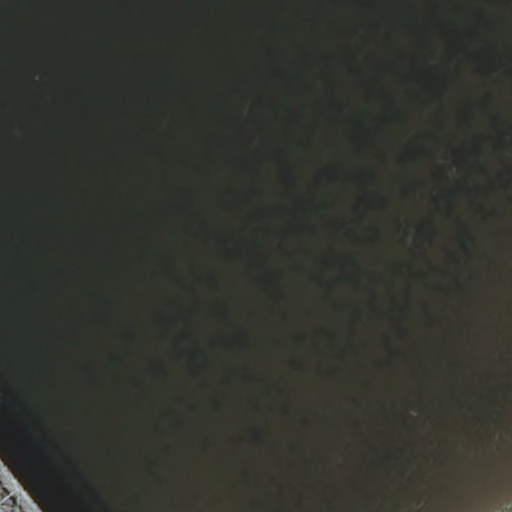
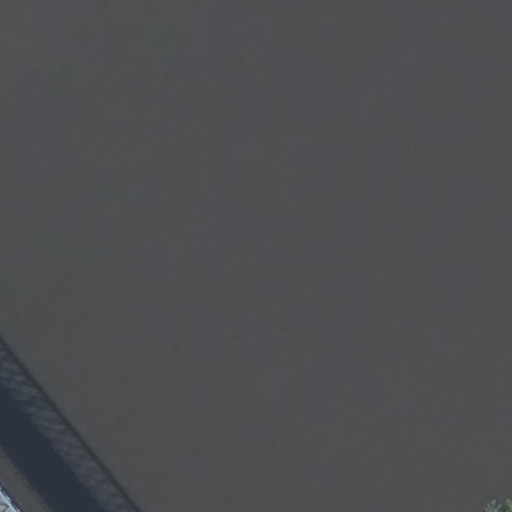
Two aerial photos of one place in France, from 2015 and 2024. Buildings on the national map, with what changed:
[]

